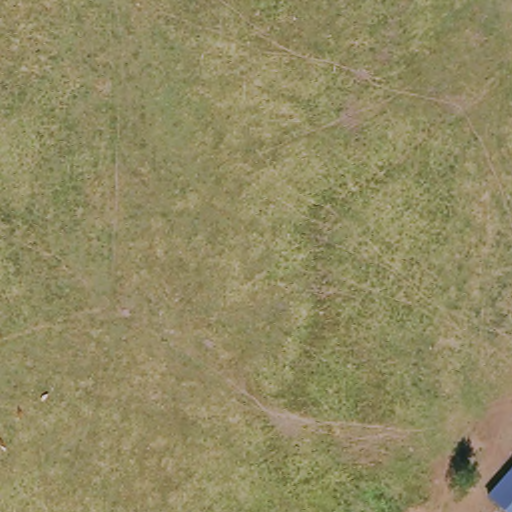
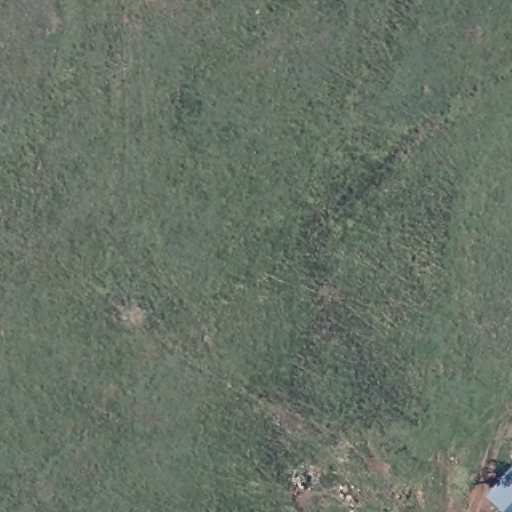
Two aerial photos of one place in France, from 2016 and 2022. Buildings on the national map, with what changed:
unchanged [(512,467),(512,512),(496,512),(483,501),(512,467)]

